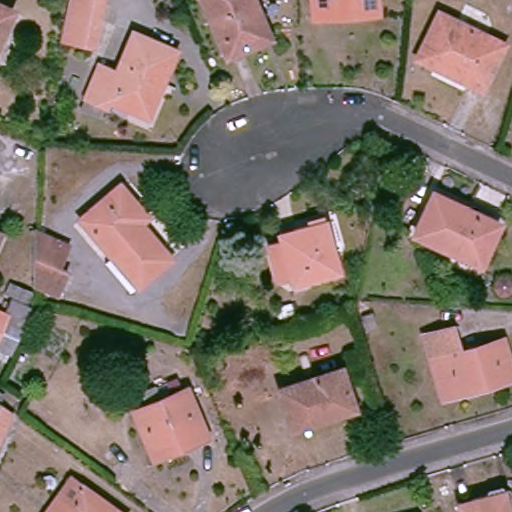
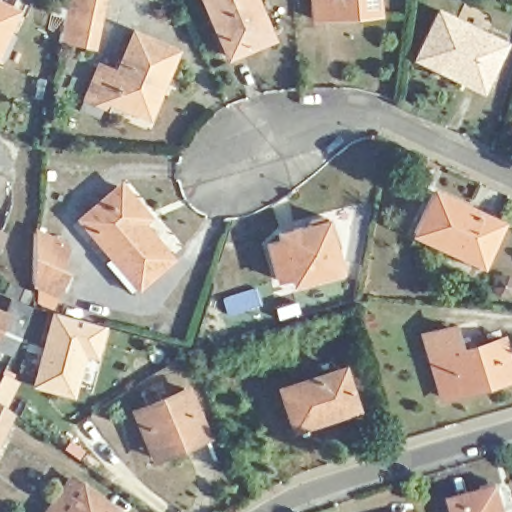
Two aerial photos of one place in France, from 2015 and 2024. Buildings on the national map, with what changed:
unchanged [(97,52),(60,42),(69,0),(107,0),(97,52)]
unchanged [(260,9),(254,12),(267,42),(231,57),(206,0),(256,0),(260,9)]
unchanged [(376,16),(315,21),(313,0),(375,0),(376,16)]
unchanged [(0,43),(0,7),(14,13),(0,43)]
unchanged [(478,90),(417,57),(440,15),(502,47),(478,90)]
unchanged [(166,85),(161,83),(146,115),(115,103),(112,108),(88,98),(102,64),(121,72),(137,34),(180,51),(166,85)]
unchanged [(145,287),(122,256),(114,261),(86,223),(123,192),(147,222),(142,225),(172,265),(145,287)]
unchanged [(485,264),(418,230),(439,192),(503,224),(485,264)]
unchanged [(345,267),(280,282),(271,244),(286,240),(285,232),(331,220),(345,267)]
unchanged [(42,228),(72,248),(63,265),(74,272),(62,292),(40,276),(42,228)]
unchanged [(7,309),(16,288),(32,293),(29,304),(34,307),(12,358),(0,352),(0,307),(7,309)]
new [(32,387),(51,312),(104,326),(97,357),(84,354),(74,397),(32,387)]
unchanged [(463,356),(497,346),(507,382),(446,402),(425,339),(455,329),(463,356)]
unchanged [(357,407),(323,419),(320,415),(292,423),(281,391),(345,369),(357,407)]
unchanged [(150,444),(137,410),(192,391),(209,438),(190,445),(154,457),(150,444)]
unchanged [(14,417),(0,446),(0,406),(14,417)]
unchanged [(72,479),(118,512),(57,512),(52,508),(72,479)]
unchanged [(459,512),(458,508),(503,498),(506,512),(459,512)]

